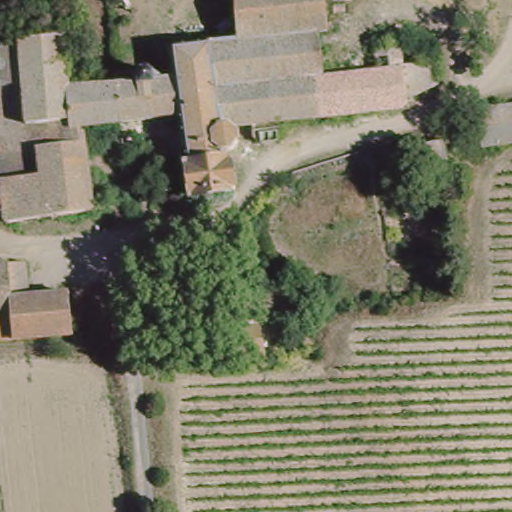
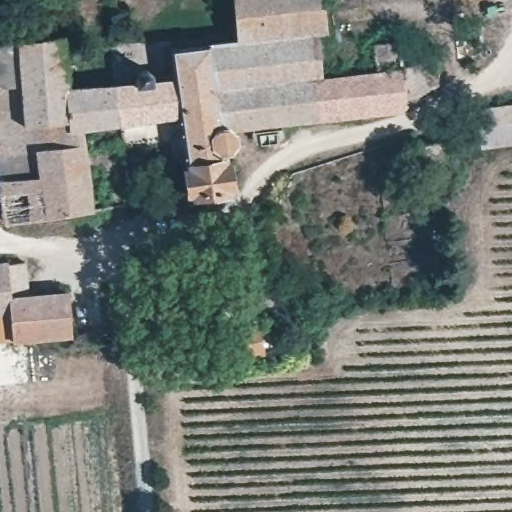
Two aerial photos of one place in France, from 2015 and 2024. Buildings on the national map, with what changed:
unchanged [(326,0),(329,31),(318,31),(242,35),(238,0),(326,0)]
unchanged [(413,104),(284,119),(285,132),(277,142),(261,144),(248,136),(246,124),(226,126),(214,40),(235,35),(242,35),(318,31),(322,72),(379,66),(377,41),(400,38),(413,104)]
unchanged [(0,41),(64,38),(74,94),(117,87),(120,124),(86,129),(92,209),(7,221),(0,154),(0,41)]
unchanged [(176,79),(172,47),(214,40),(226,126),(229,127),(234,132),(237,137),(238,145),(229,148),(235,185),(195,192),(182,114),(176,79)]
unchanged [(117,87),(176,79),(182,114),(120,124),(117,87)]
unchanged [(481,151),(477,110),(512,106),(512,146),(481,151)]
unchanged [(2,338),(0,315),(0,257),(15,255),(19,288),(57,285),(62,332),(2,338)]
unchanged [(0,339),(0,315),(2,338),(0,339)]
unchanged [(235,360),(230,341),(230,332),(272,321),(277,350),(235,360)]

